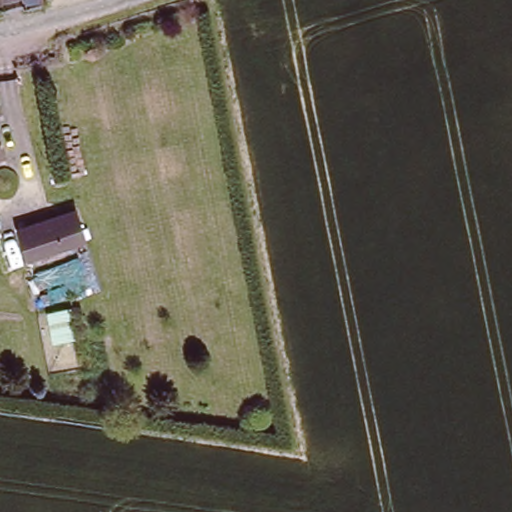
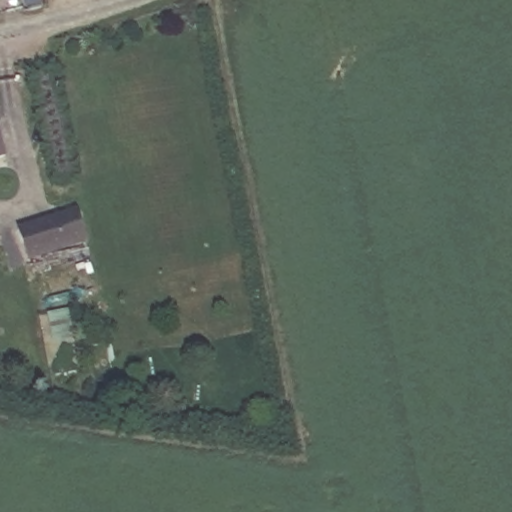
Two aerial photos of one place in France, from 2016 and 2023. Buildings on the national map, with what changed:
unchanged [(45,6),(28,9),(26,0),(44,0),(45,6)]
unchanged [(17,233),(70,215),(80,244),(26,262),(17,233)]

